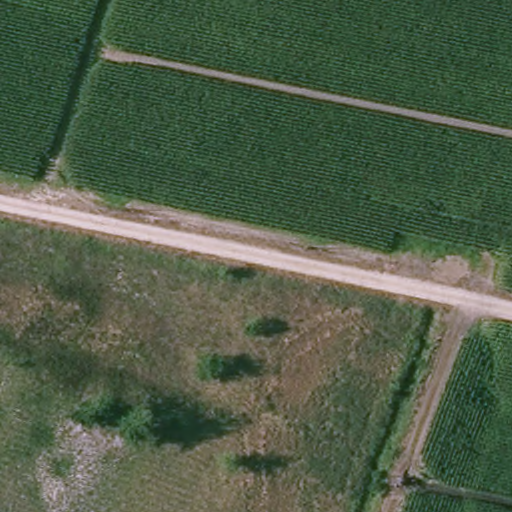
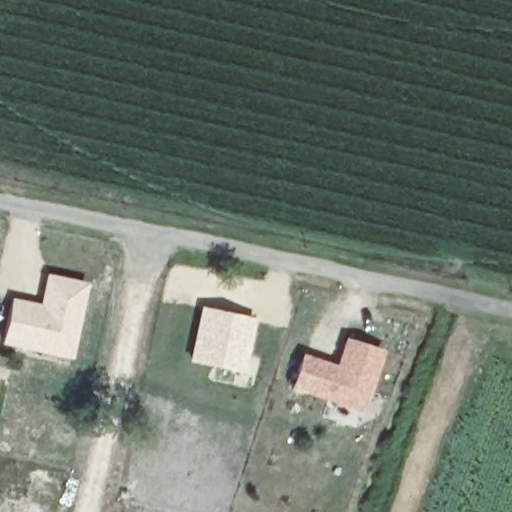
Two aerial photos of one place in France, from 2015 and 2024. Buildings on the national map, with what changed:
new [(11,296),(37,301),(45,271),(87,281),(68,359),(0,344),(0,341),(11,296)]
new [(199,304),(254,316),(242,372),(186,360),(199,304)]
new [(301,351),(333,362),(343,335),(383,348),(360,412),(289,387),(301,351)]

